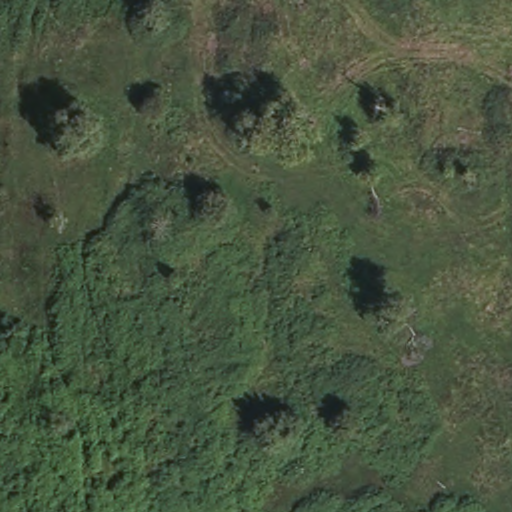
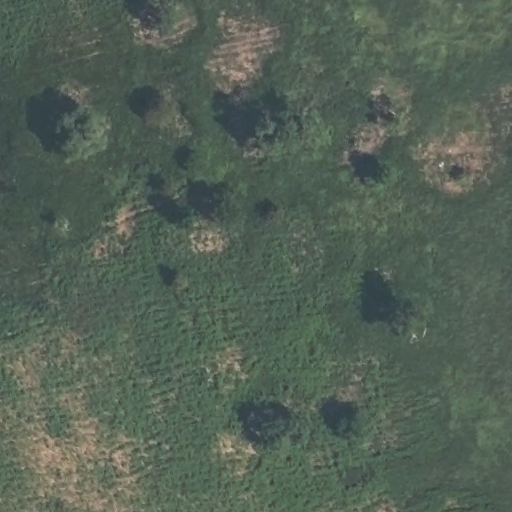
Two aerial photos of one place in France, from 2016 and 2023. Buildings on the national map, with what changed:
[]

